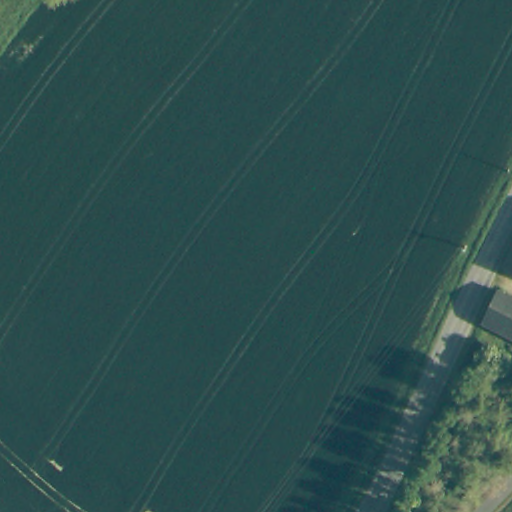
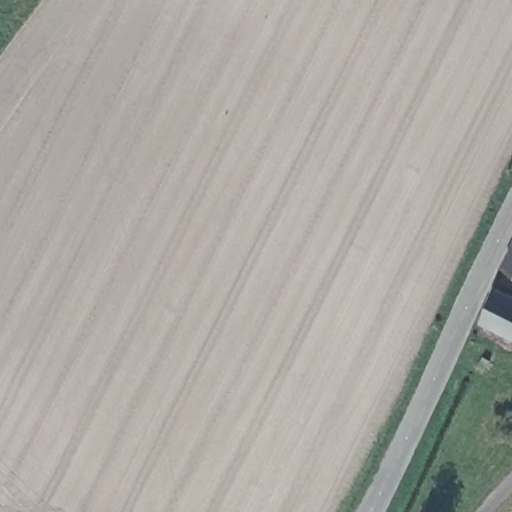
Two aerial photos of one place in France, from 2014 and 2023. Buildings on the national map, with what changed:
unchanged [(501,269),(497,267),(512,238),(512,275),(501,269)]
unchanged [(478,326),(493,294),(512,303),(512,343),(478,326)]

